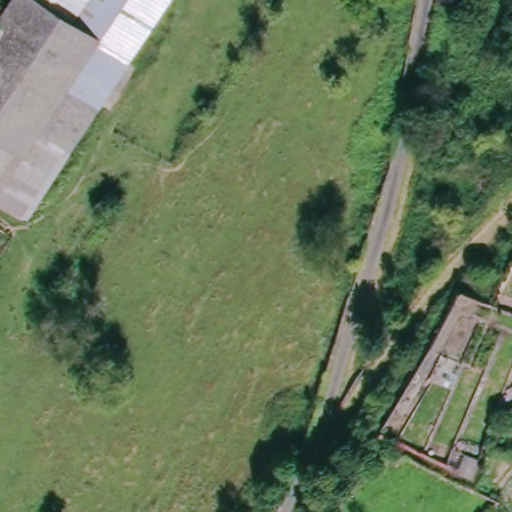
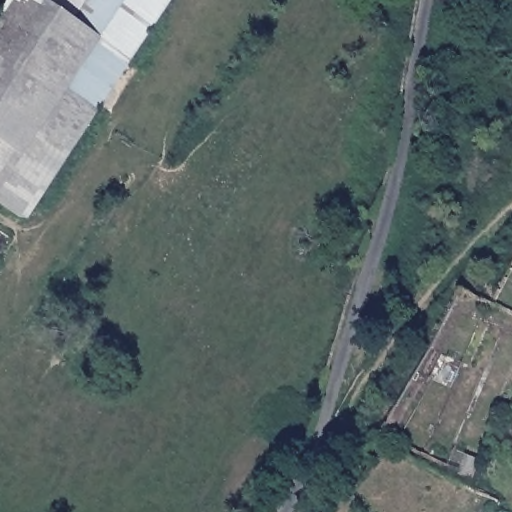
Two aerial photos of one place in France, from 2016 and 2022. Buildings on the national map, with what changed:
unchanged [(126,60),(133,67),(105,114),(97,104),(20,221),(0,208),(0,4),(3,0),(167,0),(126,60)]

